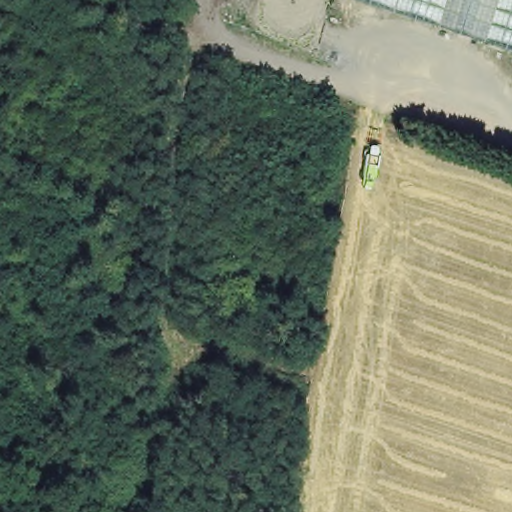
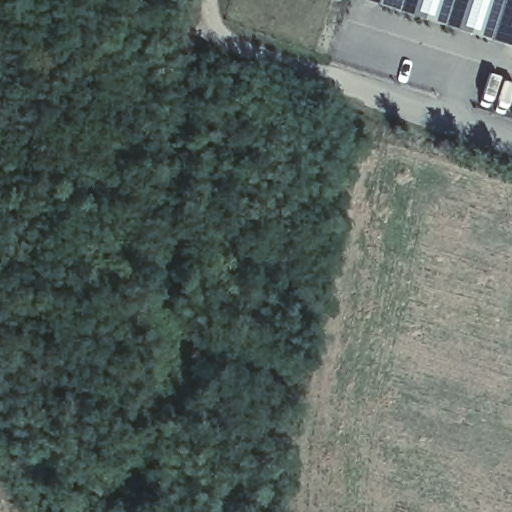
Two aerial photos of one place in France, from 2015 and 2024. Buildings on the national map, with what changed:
unchanged [(512,0),(512,48),(362,0),(512,0)]
unchanged [(320,31),(301,26),(306,11),(326,16),(320,31)]

